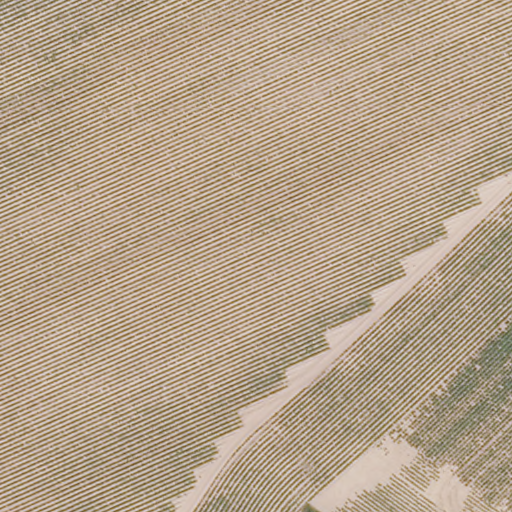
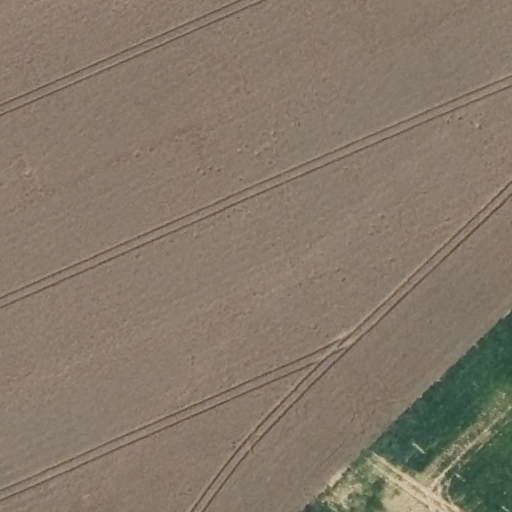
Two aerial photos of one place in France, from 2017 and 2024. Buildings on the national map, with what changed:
[]

